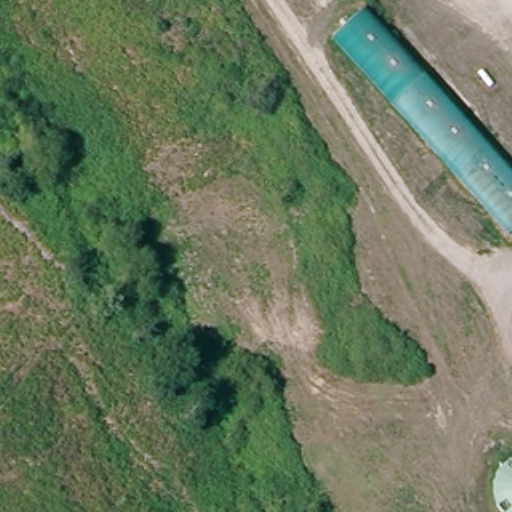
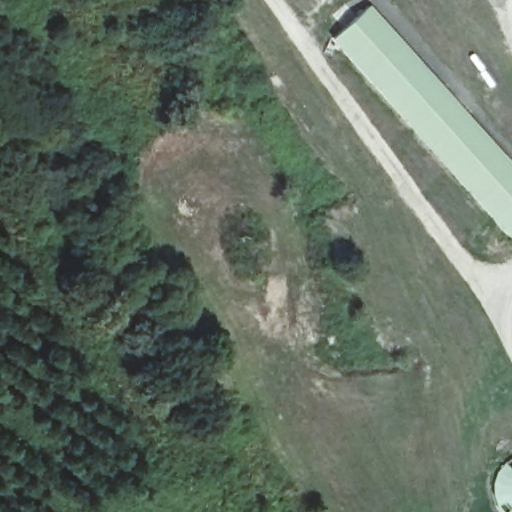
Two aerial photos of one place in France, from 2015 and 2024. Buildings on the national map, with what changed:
unchanged [(512,176),(512,230),(507,235),(329,40),(366,11),(512,176)]

